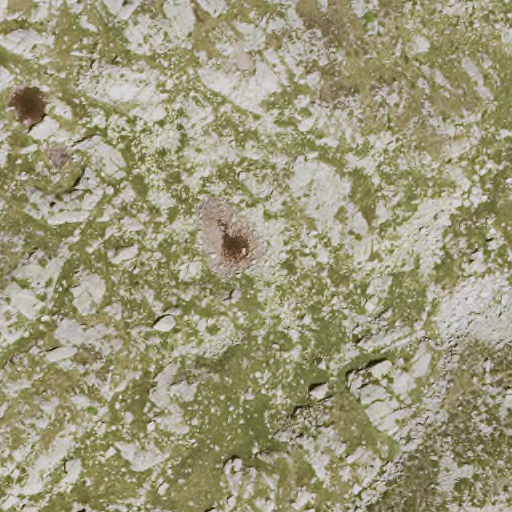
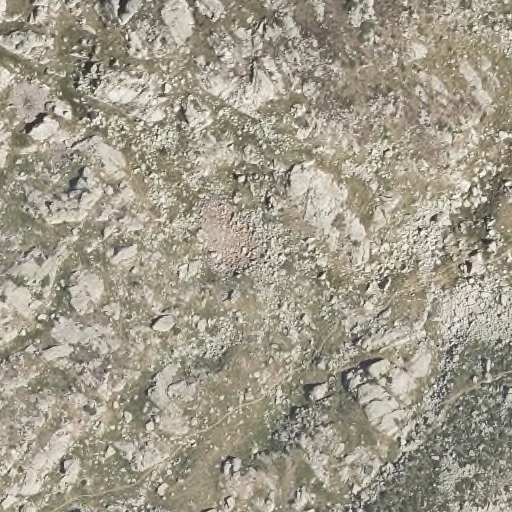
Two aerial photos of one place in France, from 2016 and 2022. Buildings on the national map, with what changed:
[]

